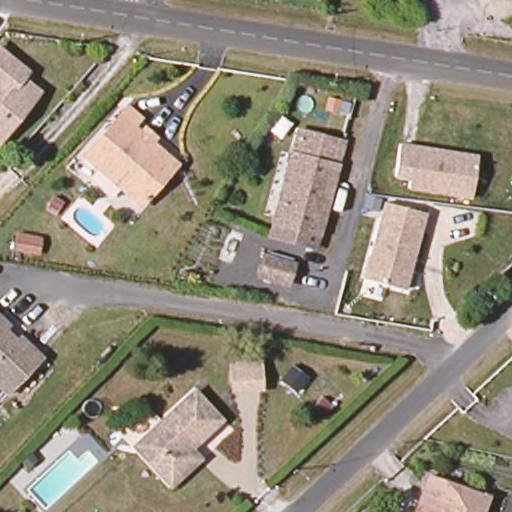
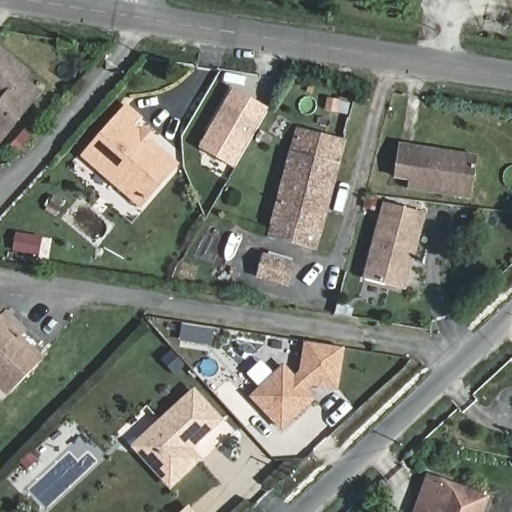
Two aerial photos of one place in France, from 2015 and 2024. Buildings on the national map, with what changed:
unchanged [(487,0),(512,0),(512,4),(487,0)]
unchanged [(19,71),(37,85),(0,131),(0,46),(24,65),(19,71)]
new [(234,88),(270,108),(236,167),(200,147),(234,88)]
unchanged [(138,207),(81,156),(125,107),(138,118),(129,127),(139,135),(139,140),(143,143),(148,142),(174,165),(138,207)]
unchanged [(295,133),(340,144),(334,166),(289,155),(295,133)]
unchanged [(474,200),(407,190),(409,180),(395,178),(399,143),(478,154),(474,200)]
unchanged [(334,166),(313,250),(267,237),(289,155),(334,166)]
unchanged [(409,290),(364,279),(384,200),(429,213),(409,290)]
unchanged [(250,274),(258,255),(287,266),(280,285),(250,274)]
unchanged [(43,363),(10,397),(0,388),(0,323),(9,332),(6,335),(15,344),(19,341),(43,363)]
new [(284,364),(294,374),(300,371),(304,342),(346,346),(339,391),(312,392),(317,399),(282,432),(249,397),(284,364)]
demolished [(266,391),(231,393),(232,361),(264,361),(266,391)]
unchanged [(186,449),(195,460),(166,486),(131,448),(190,392),(217,421),(186,449)]
unchanged [(484,497),(479,512),(412,512),(426,476),(484,497)]

